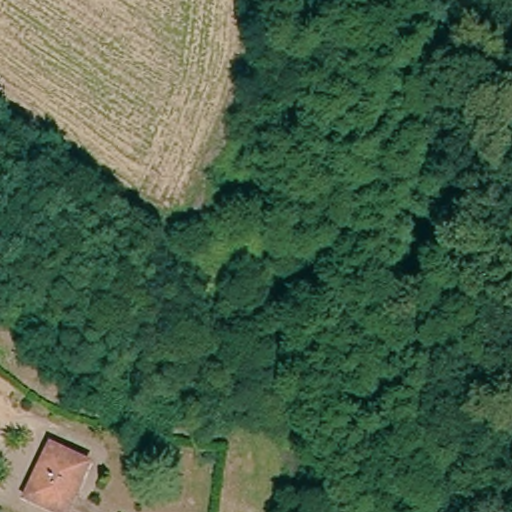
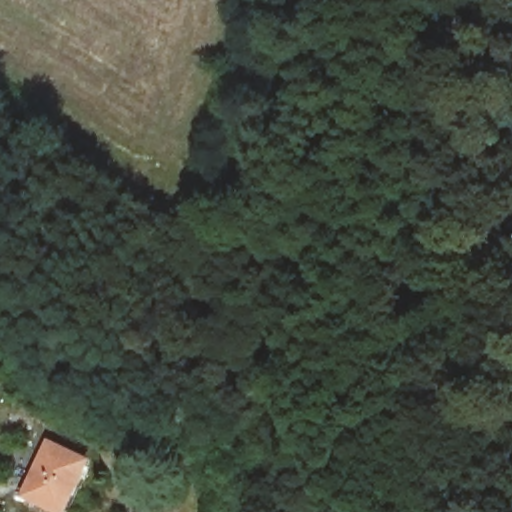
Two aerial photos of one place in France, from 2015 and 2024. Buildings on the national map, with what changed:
unchanged [(57,450),(92,469),(68,512),(48,512),(29,501),(57,450)]

